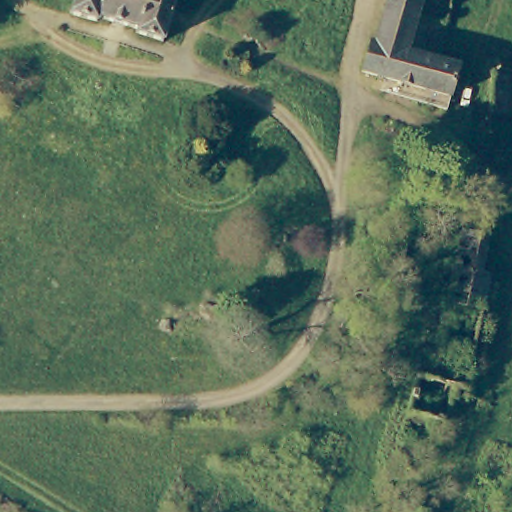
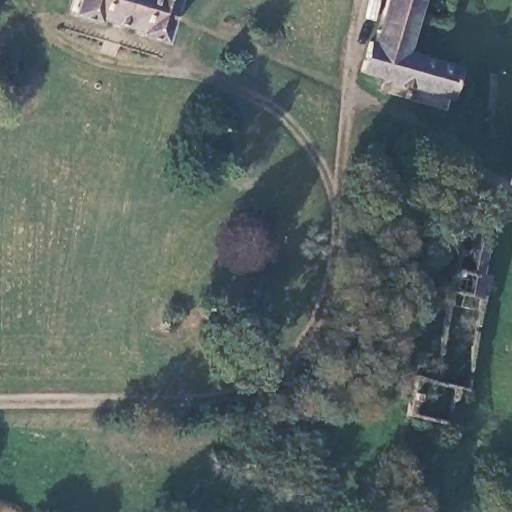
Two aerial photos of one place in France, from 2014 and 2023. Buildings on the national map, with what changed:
unchanged [(134,29),(136,22),(106,14),(103,18),(70,9),(73,0),(177,0),(166,37),(134,29)]
unchanged [(388,86),(392,74),(371,68),(367,67),(372,35),(380,36),(381,29),(382,22),(387,0),(449,0),(439,47),(459,52),(450,101),(411,92),(388,86)]
unchanged [(459,52),(501,62),(492,122),(476,117),(476,106),(450,101),(459,52)]
unchanged [(508,174),(512,148),(512,174),(508,174)]
unchanged [(424,502),(441,506),(441,512),(423,512),(424,502)]

